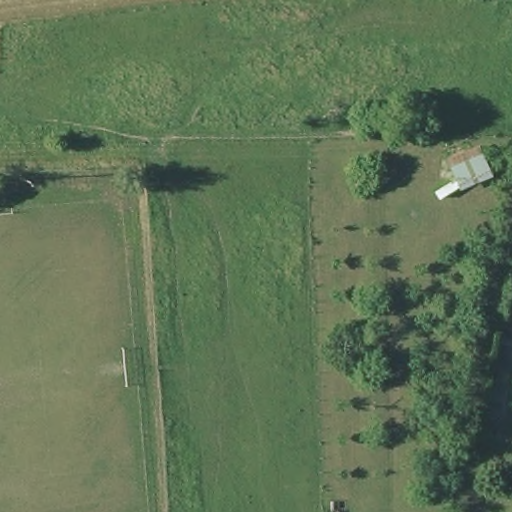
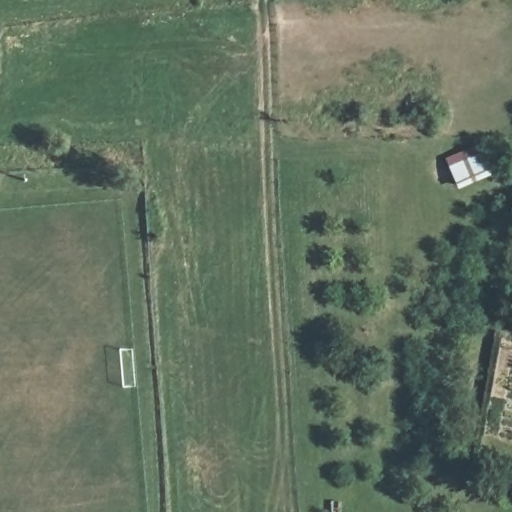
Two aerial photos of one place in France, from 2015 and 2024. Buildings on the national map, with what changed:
unchanged [(442,197),(437,186),(453,176),(442,146),(472,134),(492,174),(442,197)]

